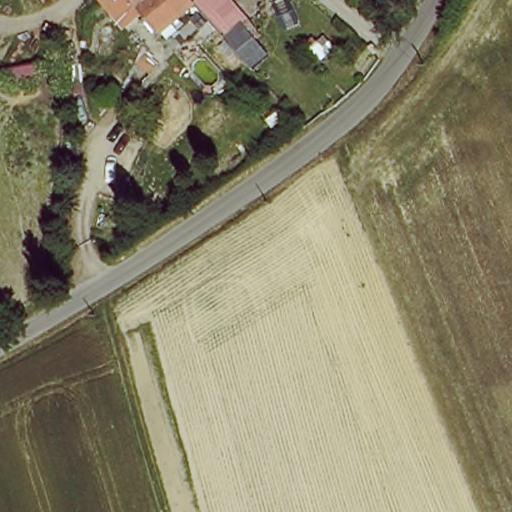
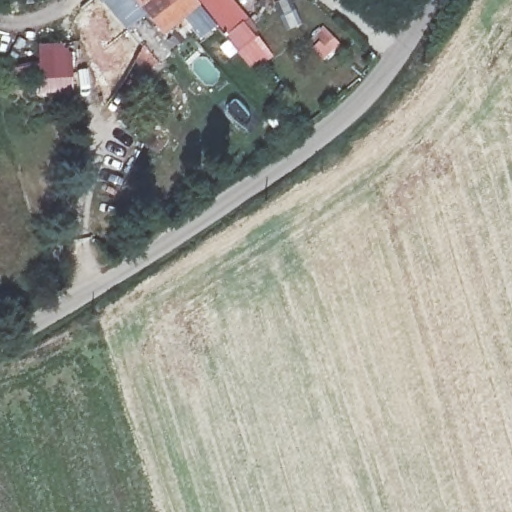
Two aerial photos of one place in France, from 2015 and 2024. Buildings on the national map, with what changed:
unchanged [(102,0),(139,0),(150,12),(127,29),(102,0)]
unchanged [(168,32),(150,12),(139,0),(196,0),(200,5),(168,32)]
unchanged [(237,39),(200,0),(236,0),(255,22),(237,39)]
new [(38,76),(23,79),(23,81),(9,84),(6,70),(37,64),(37,45),(67,44),(73,93),(40,92),(38,76)]

